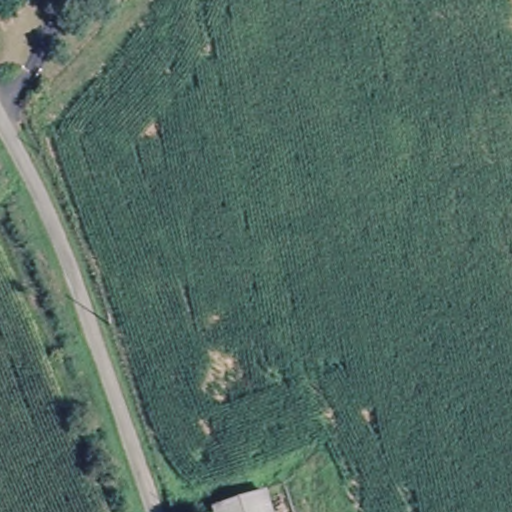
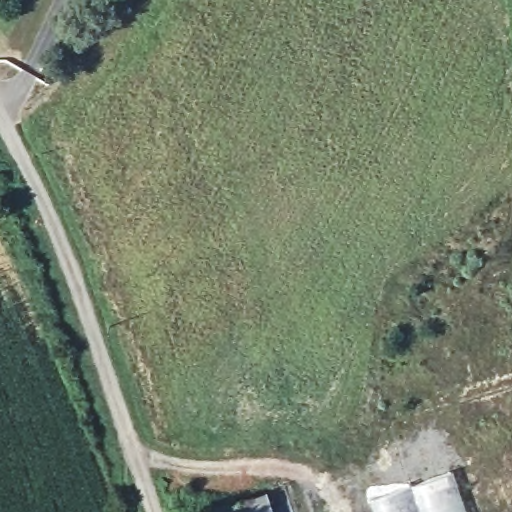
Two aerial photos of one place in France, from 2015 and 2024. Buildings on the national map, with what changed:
new [(453,470),(467,512),(372,512),(368,500),(366,488),(410,482),(453,470)]
unchanged [(265,493),(271,512),(215,512),(214,510),(265,493)]

